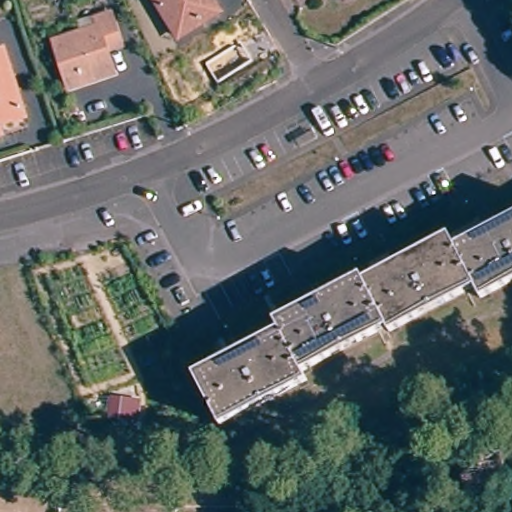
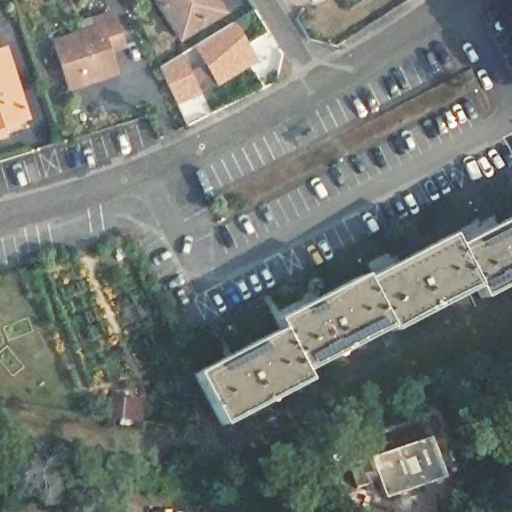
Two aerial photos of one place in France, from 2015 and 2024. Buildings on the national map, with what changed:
unchanged [(180,23),(166,0),(218,0),(180,23)]
unchanged [(69,76),(56,31),(92,20),(89,12),(111,6),(120,35),(96,44),(103,66),(69,76)]
new [(191,71),(205,64),(193,47),(233,22),(258,62),(219,87),(215,83),(199,92),(200,95),(178,105),(158,69),(182,55),(191,71)]
unchanged [(0,37),(10,34),(29,104),(0,113),(0,37)]
unchanged [(473,287),(385,329),(382,325),(294,367),(300,380),(215,421),(190,367),(274,326),(268,314),(355,272),(357,275),(446,233),(451,241),(512,213),(512,280),(477,296),(473,287)]
unchanged [(142,398),(140,421),(107,417),(109,394),(142,398)]
new [(366,458),(430,434),(445,478),(381,500),(375,482),(355,487),(348,467),(366,458)]

